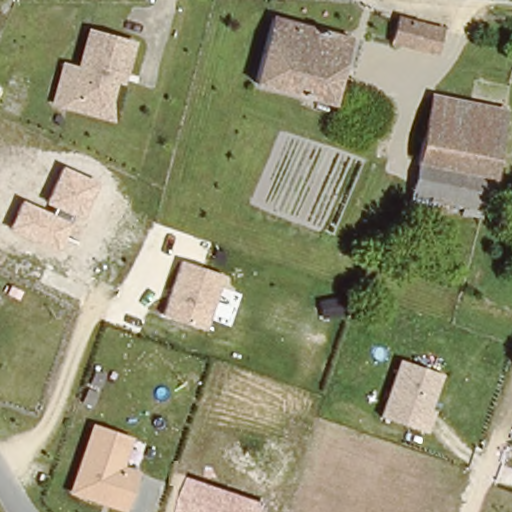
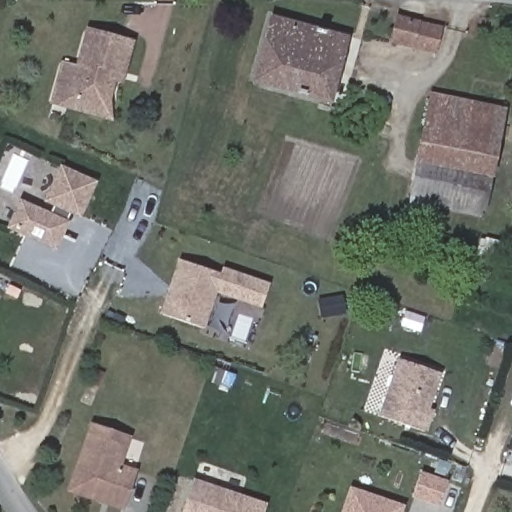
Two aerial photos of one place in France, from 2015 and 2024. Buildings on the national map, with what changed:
unchanged [(272,12),(351,35),(332,102),(252,81),(272,12)]
unchanged [(442,26),(437,58),(379,42),(390,12),(442,26)]
unchanged [(125,84),(116,84),(111,101),(111,119),(53,103),(63,61),(76,65),(86,27),(136,42),(125,84)]
unchanged [(509,103),(485,215),(408,199),(438,89),(509,103)]
unchanged [(81,222),(71,217),(56,253),(6,231),(20,199),(40,208),(59,165),(98,181),(81,222)]
unchanged [(205,328),(160,314),(178,259),(224,275),(205,328)]
unchanged [(425,430),(382,416),(398,361),(443,374),(425,430)]
unchanged [(140,468),(125,512),(67,491),(93,424),(133,437),(121,463),(140,468)]
new [(422,472),(448,480),(439,507),(412,498),(422,472)]
unchanged [(264,512),(181,512),(192,478),(267,504),(264,512)]
new [(350,487),(404,506),(402,512),(342,512),(350,487)]

